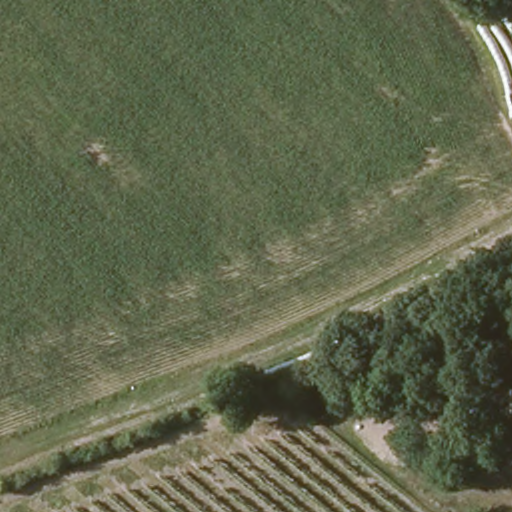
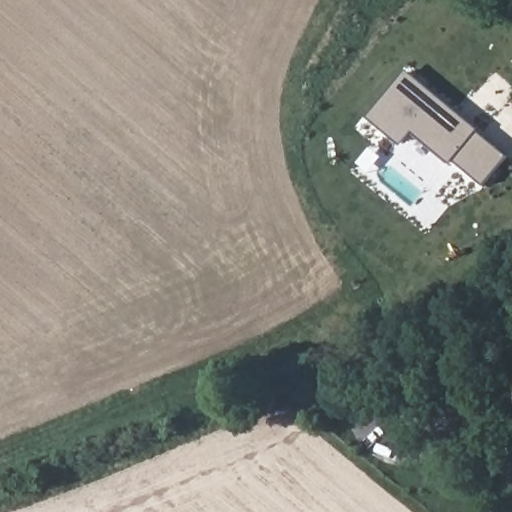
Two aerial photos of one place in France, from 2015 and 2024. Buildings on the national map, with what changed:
new [(483,187),(453,162),(402,139),(397,144),(366,118),(405,71),(508,156),(483,187)]

